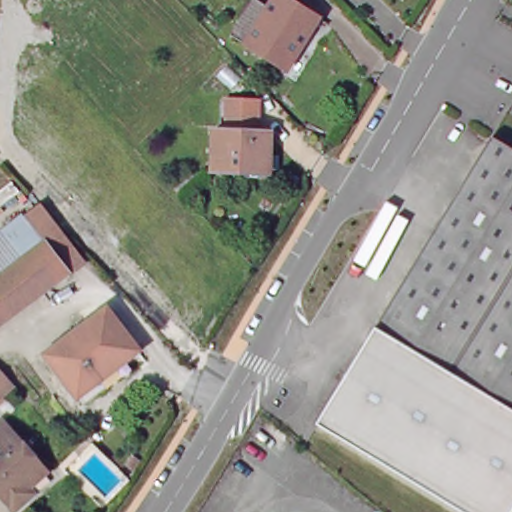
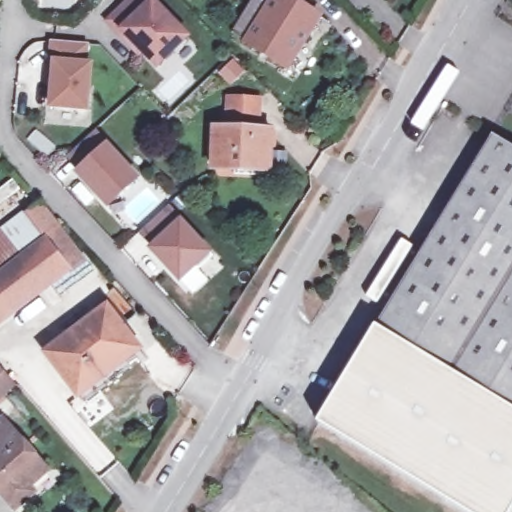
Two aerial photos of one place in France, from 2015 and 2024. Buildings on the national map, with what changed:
new [(191,37),(155,70),(138,52),(136,54),(115,32),(103,21),(125,0),(155,0),(191,37)]
unchanged [(306,22),(308,23),(298,39),(296,38),(282,60),(231,28),(248,0),(266,0),(299,0),(314,9),(306,22)]
new [(48,41),(88,44),(86,61),(93,62),(88,111),(48,109),(49,80),(44,80),(48,41)]
new [(224,96),(261,96),(260,130),(224,127),(224,96)]
unchanged [(215,127),(271,130),(270,171),(213,169),(215,127)]
unchanged [(376,319),(491,128),(512,141),(512,401),(376,319)]
new [(78,170),(64,156),(94,129),(106,142),(140,178),(106,210),(73,173),(78,170)]
unchanged [(4,217),(11,211),(16,217),(43,197),(85,253),(0,319),(0,230),(9,223),(4,217)]
new [(151,246),(138,232),(168,203),(181,217),(212,252),(179,284),(148,250),(151,246)]
unchanged [(49,349),(108,302),(141,344),(120,360),(126,367),(86,397),(81,390),(49,349)]
unchanged [(469,512),(322,424),(377,328),(376,319),(512,401),(512,512),(469,512)]
unchanged [(0,354),(10,350),(12,356),(1,359),(0,356),(0,354)]
unchanged [(26,484),(34,493),(14,509),(0,493),(0,423),(3,419),(46,467),(26,484)]
unchanged [(136,456),(141,461),(136,466),(131,462),(136,456)]

